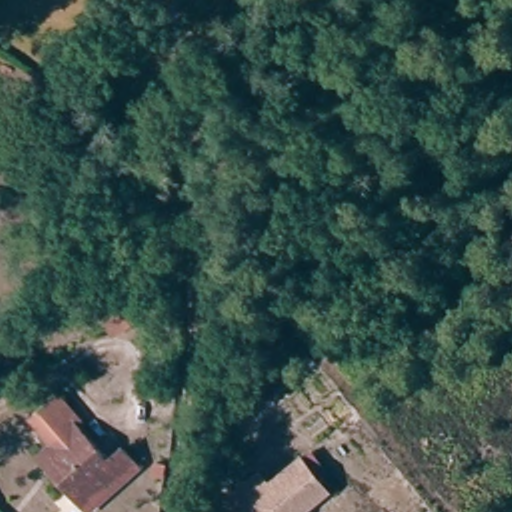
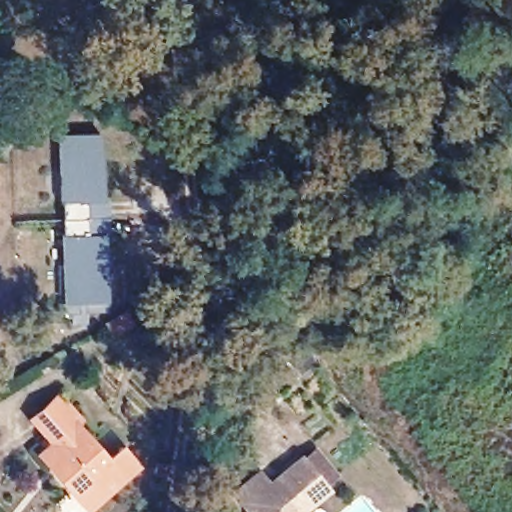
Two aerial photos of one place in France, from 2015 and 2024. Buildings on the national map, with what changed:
new [(85,312),(84,322),(69,322),(69,313),(56,313),(56,303),(62,305),(57,135),(100,132),(104,199),(107,197),(106,232),(104,232),(106,298),(105,311),(85,312)]
unchanged [(134,323),(111,337),(103,324),(126,308),(134,323)]
unchanged [(55,472),(43,456),(49,451),(55,446),(34,421),(59,401),(63,397),(64,398),(84,422),(79,427),(110,463),(128,448),(144,469),(119,491),(93,512),(89,512),(73,492),(55,472)]
unchanged [(255,492),(245,498),(234,485),(257,467),(269,478),(302,453),(327,486),(295,512),(255,512),(252,508),(255,492)]

